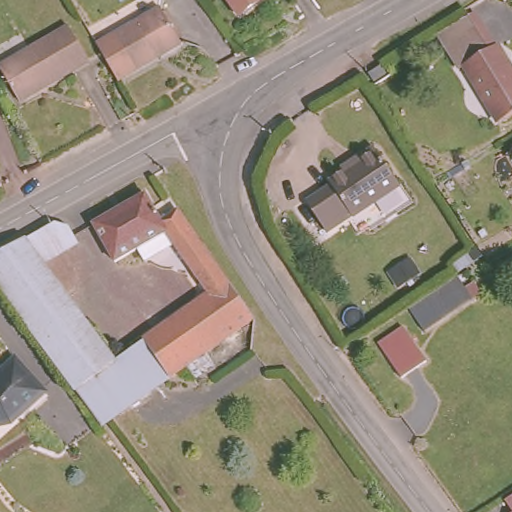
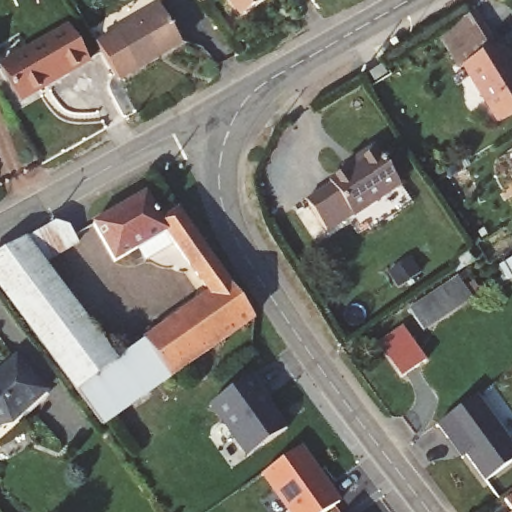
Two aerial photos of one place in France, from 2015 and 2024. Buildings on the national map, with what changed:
unchanged [(244,0),(254,0),(248,5),(244,0)]
unchanged [(107,39),(125,28),(169,2),(193,39),(146,66),(128,76),(107,39)]
unchanged [(496,47),(498,45),(512,70),(512,116),(499,124),(463,66),(459,68),(439,35),(475,12),(496,47)]
unchanged [(93,55),(24,95),(4,61),(73,21),(93,55)]
unchanged [(374,77),(370,72),(377,67),(381,73),(374,77)]
unchanged [(376,145),(400,184),(328,230),(308,200),(331,183),(330,180),(358,162),(356,159),(376,145)]
unchanged [(157,208),(173,198),(258,318),(237,333),(211,295),(176,246),(148,263),(141,250),(118,263),(96,225),(148,195),(157,208)]
unchanged [(61,224),(73,226),(81,243),(46,264),(118,363),(211,295),(237,333),(146,399),(136,407),(107,427),(105,428),(48,352),(38,337),(0,286),(0,259),(40,236),(61,224)]
unchanged [(509,267),(512,265),(512,273),(509,267)]
unchanged [(421,336),(407,314),(457,282),(471,302),(421,336)]
unchanged [(424,366),(399,382),(375,348),(402,331),(424,366)]
unchanged [(0,428),(0,368),(16,353),(48,392),(13,427),(0,428)]
new [(206,407),(251,376),(288,430),(244,458),(206,407)]
new [(466,457),(462,460),(437,425),(478,396),(512,443),(512,462),(484,482),(466,457)]
new [(341,502),(327,512),(287,512),(261,475),(301,446),(341,502)]
unchanged [(512,501),(512,512),(509,512),(505,506),(512,501)]

